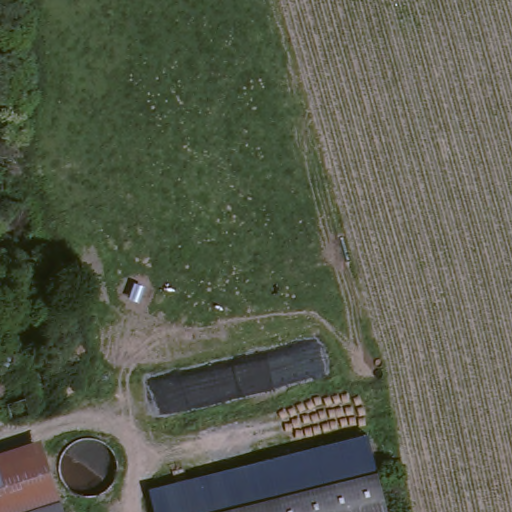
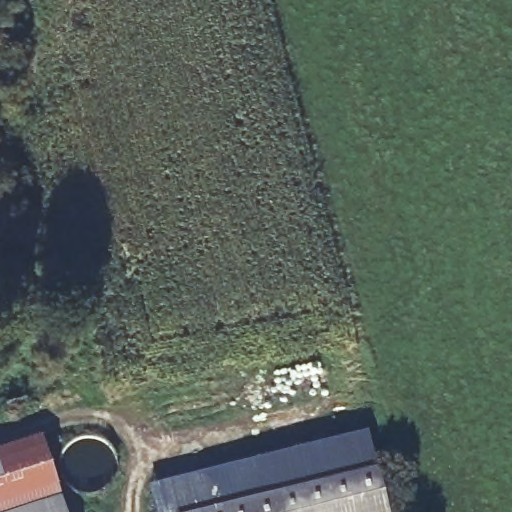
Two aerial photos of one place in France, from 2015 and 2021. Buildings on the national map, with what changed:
unchanged [(370,435),(380,474),(226,512),(159,512),(153,486),(370,435)]
unchanged [(39,438),(56,488),(0,505),(0,450),(39,438)]
unchanged [(389,512),(226,512),(380,474),(389,512)]
unchanged [(63,512),(0,512),(0,505),(56,488),(63,512)]

